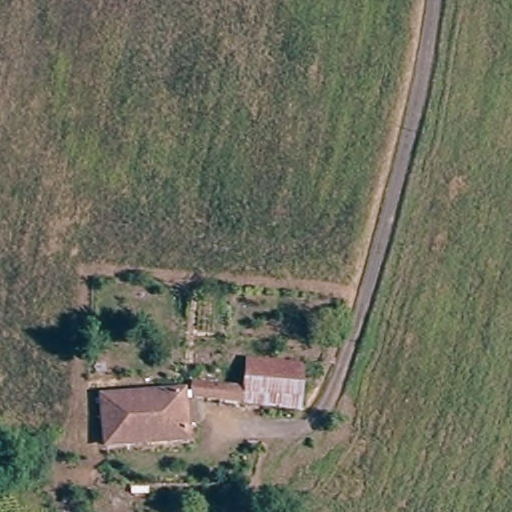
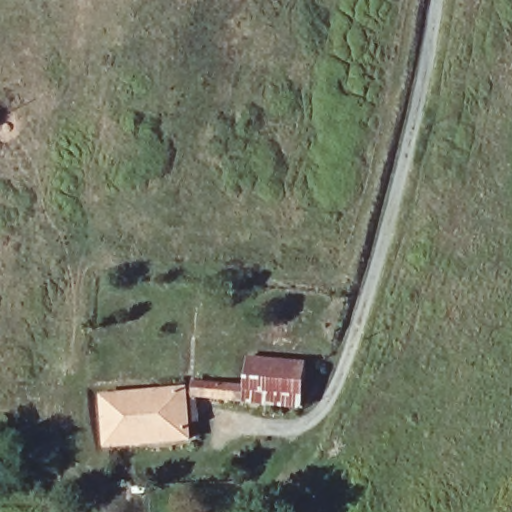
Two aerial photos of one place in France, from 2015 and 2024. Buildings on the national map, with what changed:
unchanged [(189,401),(189,378),(244,378),(245,353),(301,354),(300,399),(277,399),(189,401)]
unchanged [(103,431),(102,402),(128,401),(181,399),(182,451),(127,453),(102,454),(103,431)]

